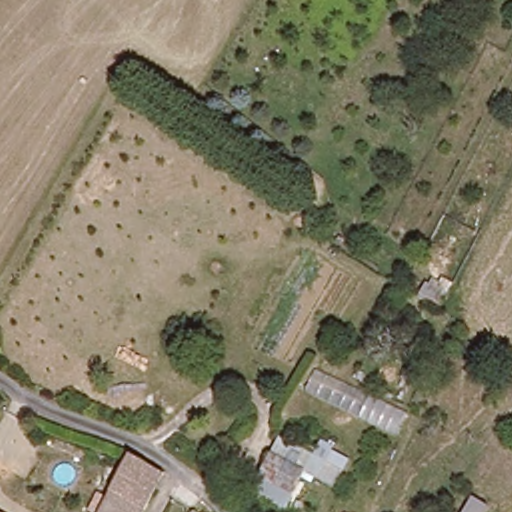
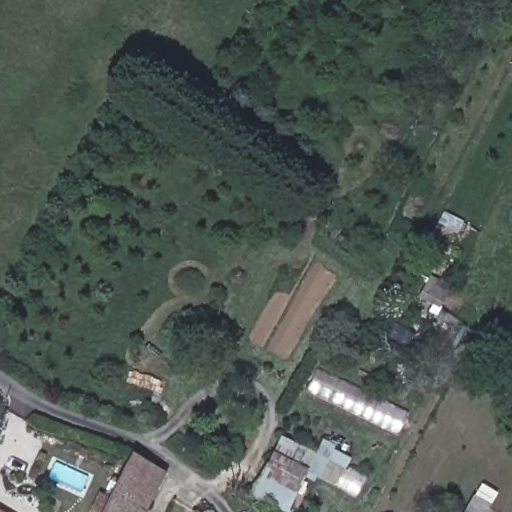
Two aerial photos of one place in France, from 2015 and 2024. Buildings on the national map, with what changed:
unchanged [(285,436),(316,453),(322,442),(329,446),(335,449),(320,477),(315,475),(306,470),(284,510),(253,493),(275,454),(285,436)]
unchanged [(163,474),(143,512),(98,512),(129,453),(163,474)]
unchanged [(204,512),(185,512),(190,504),(204,512)]

